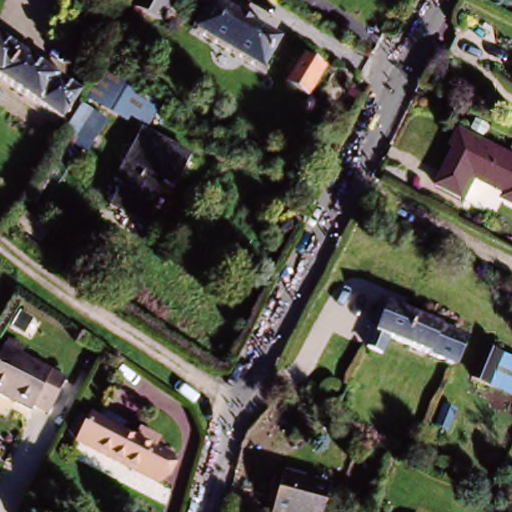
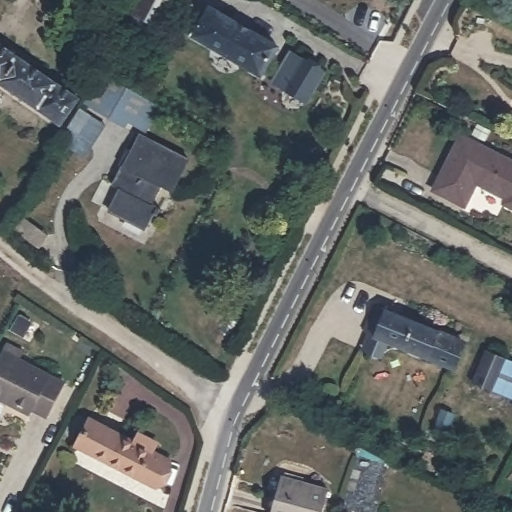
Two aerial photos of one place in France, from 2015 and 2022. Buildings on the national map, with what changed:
unchanged [(172,0),(155,31),(129,19),(138,0),(172,0)]
unchanged [(279,46),(260,83),(186,41),(207,7),(279,46)]
unchanged [(85,95),(71,116),(0,73),(0,43),(85,95)]
unchanged [(306,55),(331,71),(313,100),(286,88),(306,55)]
unchanged [(105,72),(164,104),(151,132),(90,101),(105,72)]
unchanged [(70,141),(88,110),(113,125),(91,160),(70,141)]
unchanged [(190,160),(172,199),(162,193),(145,236),(101,211),(133,136),(190,160)]
unchanged [(504,201),(473,185),(461,208),(429,192),(455,137),(512,165),(512,211),(506,208),(504,201)]
unchanged [(464,342),(450,374),(371,340),(389,307),(464,342)]
unchanged [(512,406),(472,385),(491,348),(512,359),(512,406)]
unchanged [(60,385),(44,423),(0,400),(0,385),(13,360),(60,385)]
unchanged [(469,427),(459,444),(443,436),(452,419),(469,427)]
unchanged [(141,457),(149,450),(161,457),(157,466),(168,473),(158,495),(84,454),(98,432),(141,457)]
unchanged [(503,446),(497,460),(486,456),(482,466),(467,458),(479,432),(503,446)]
unchanged [(324,489),(319,512),(266,512),(276,476),(324,489)]

